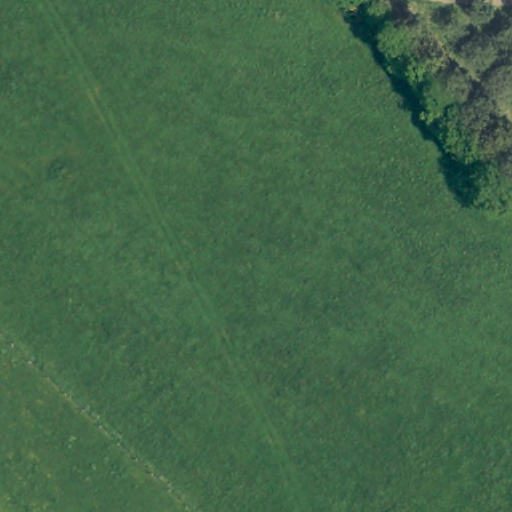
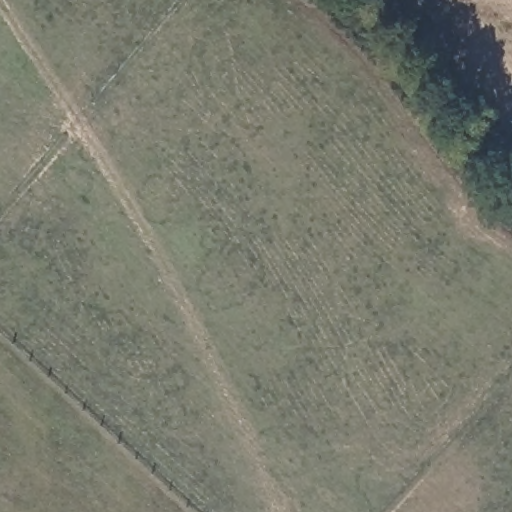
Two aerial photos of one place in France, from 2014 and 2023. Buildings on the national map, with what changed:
[]

